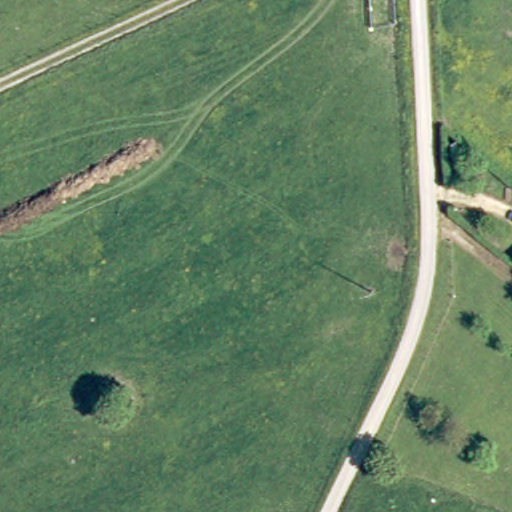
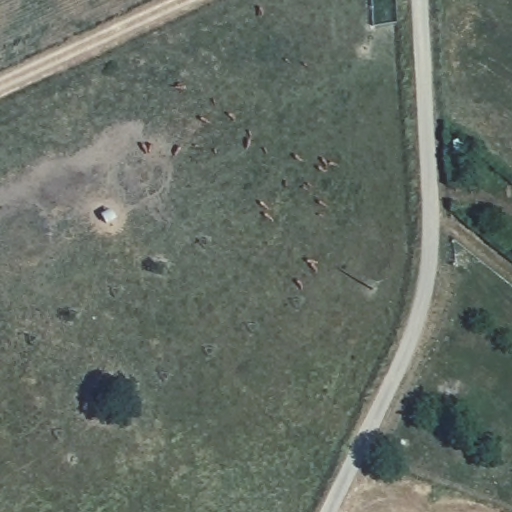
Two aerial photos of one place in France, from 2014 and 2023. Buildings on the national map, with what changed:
unchanged [(511,257),(512,256),(512,257),(511,257)]

